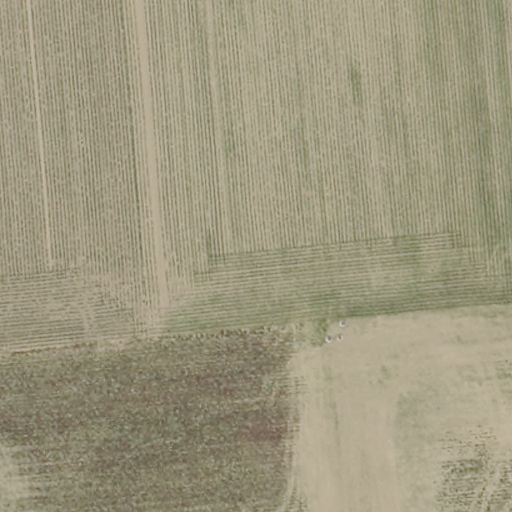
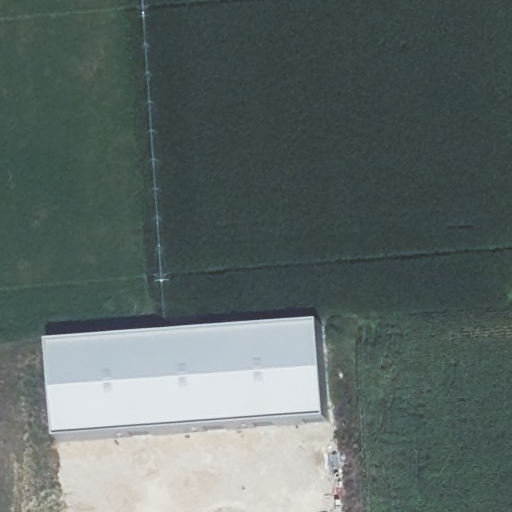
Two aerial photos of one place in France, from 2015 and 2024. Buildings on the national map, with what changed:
new [(323,324),(331,423),(58,442),(50,344),(323,324)]

